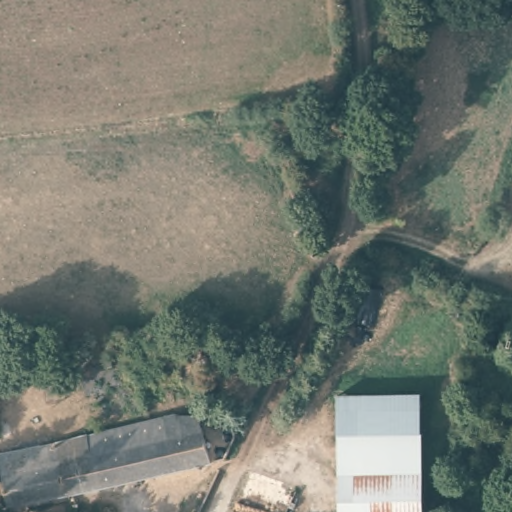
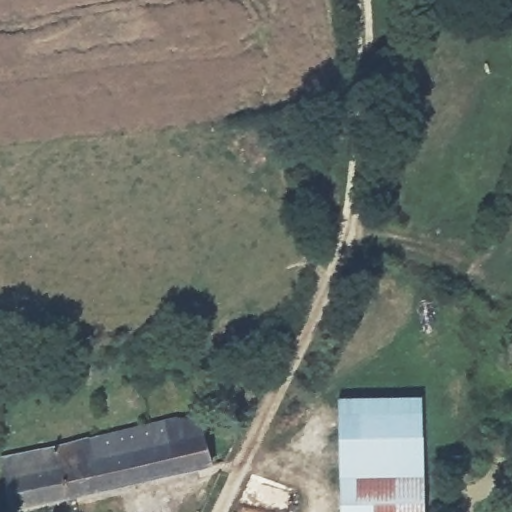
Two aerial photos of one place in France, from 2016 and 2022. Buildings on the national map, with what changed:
unchanged [(512,343),(512,362),(507,361),(512,343)]
unchanged [(341,447),(341,400),(425,401),(424,446),(341,447)]
unchanged [(8,505),(0,469),(0,452),(193,406),(210,459),(8,505)]
unchanged [(340,488),(341,447),(424,446),(424,486),(340,488)]
unchanged [(423,512),(340,512),(340,488),(424,486),(423,512)]

